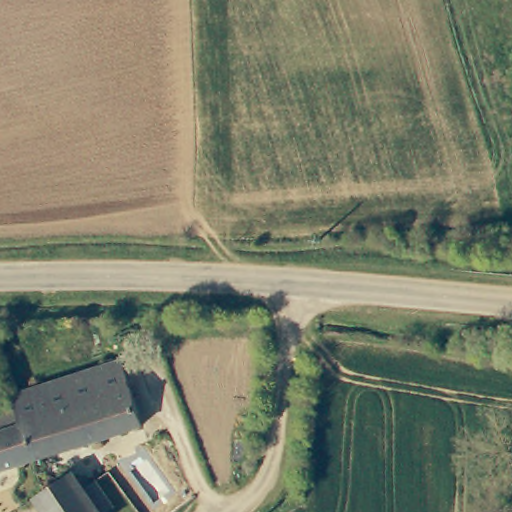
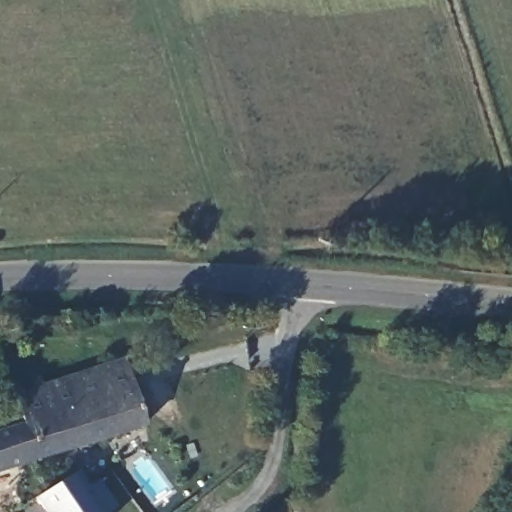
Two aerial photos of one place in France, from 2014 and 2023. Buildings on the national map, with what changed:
unchanged [(145,428),(35,461),(25,426),(17,403),(15,395),(125,361),(145,428)]
unchanged [(35,461),(0,472),(0,433),(25,426),(35,461)]
unchanged [(40,491),(69,471),(81,489),(93,480),(112,508),(106,512),(43,512),(32,496),(40,491)]

